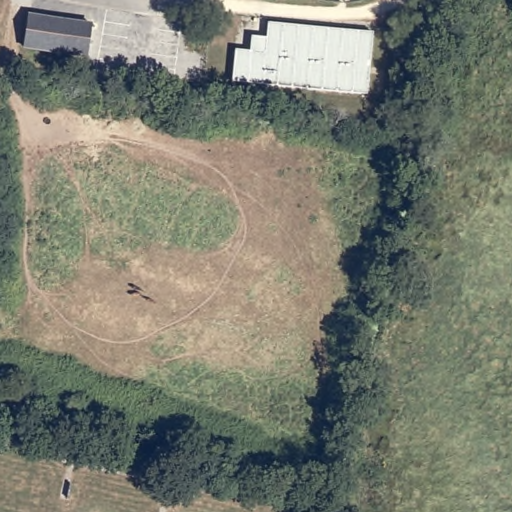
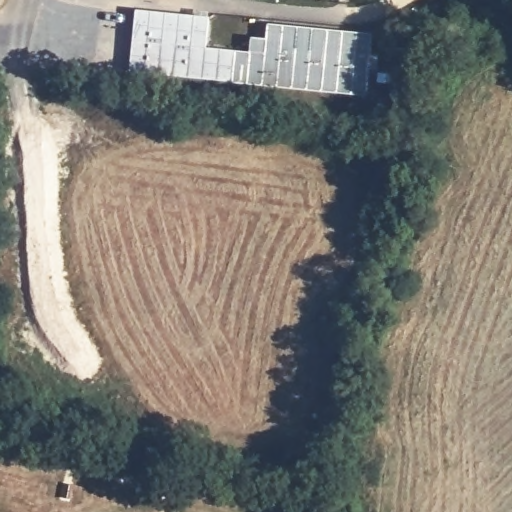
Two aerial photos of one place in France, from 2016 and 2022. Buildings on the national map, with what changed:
new [(231,81),(130,71),(135,8),(210,16),(206,46),(235,49),(231,81)]
unchanged [(372,33),(367,95),(231,81),(235,49),(250,50),(251,36),(266,37),(267,23),(372,33)]

